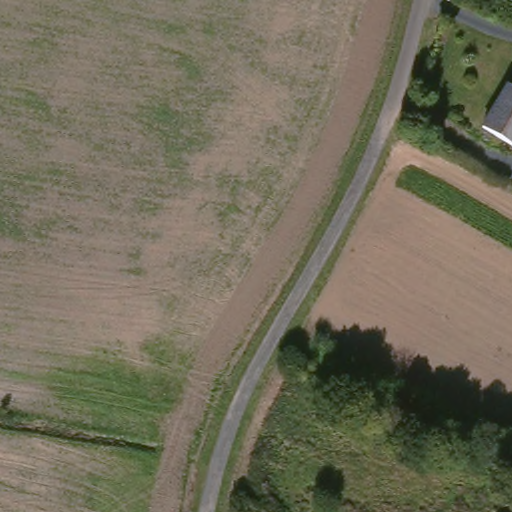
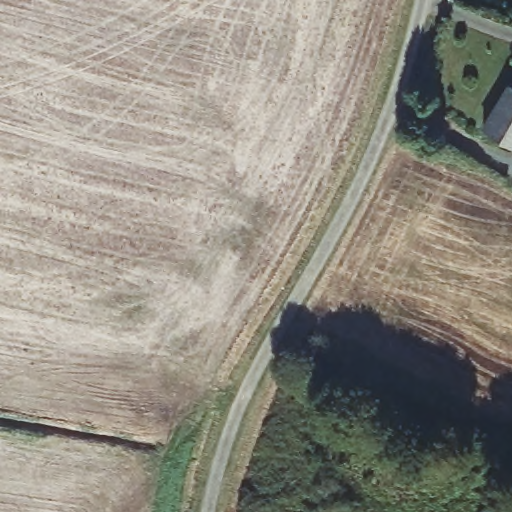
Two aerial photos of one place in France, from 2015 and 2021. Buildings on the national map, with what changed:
unchanged [(486,125),(509,78),(512,80),(512,138),(486,125)]

